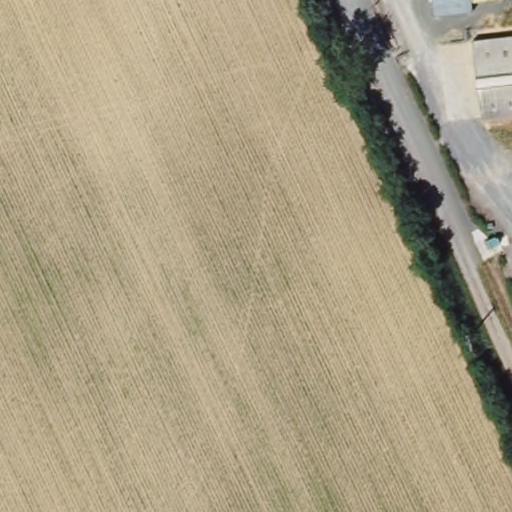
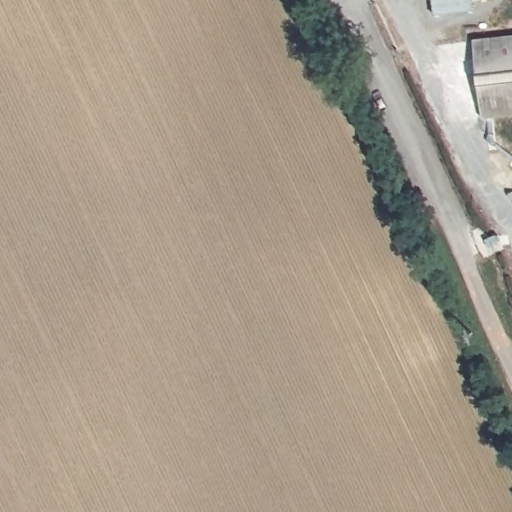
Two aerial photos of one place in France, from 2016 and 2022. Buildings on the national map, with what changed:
unchanged [(478,36),(512,32),(512,107),(487,110),(478,36)]

